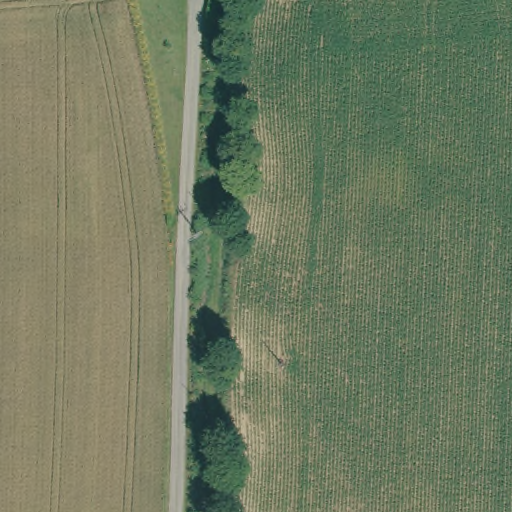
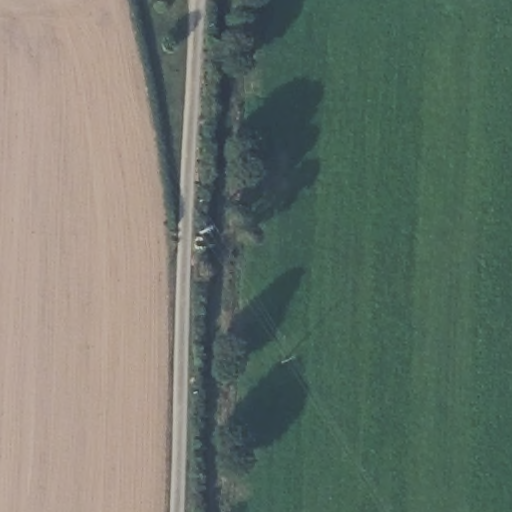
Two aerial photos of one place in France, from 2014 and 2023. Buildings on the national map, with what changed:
[]

